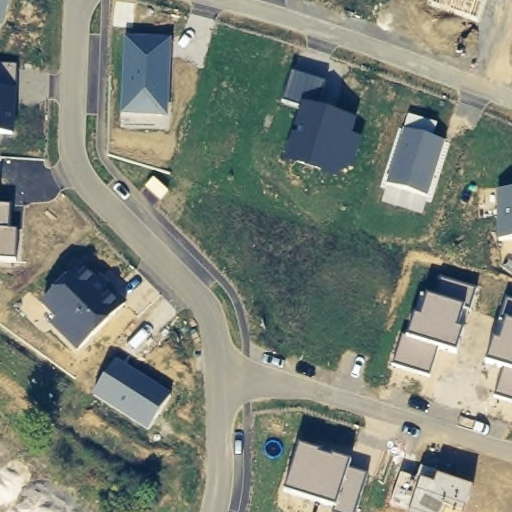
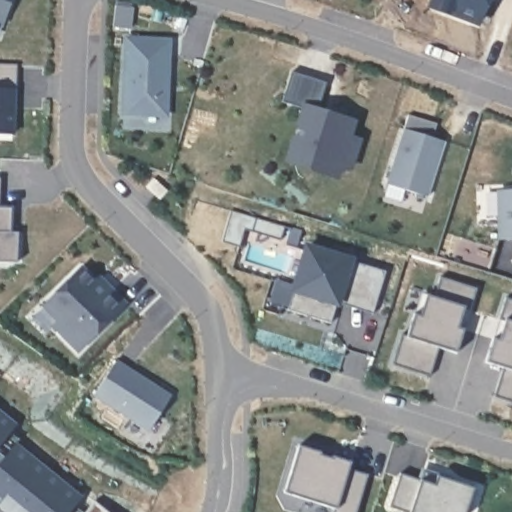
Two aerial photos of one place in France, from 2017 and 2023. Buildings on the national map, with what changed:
unchanged [(0,0),(12,0),(0,32),(0,0)]
unchanged [(487,0),(479,27),(427,4),(429,0),(487,0)]
unchanged [(171,39),(169,118),(120,115),(123,36),(171,39)]
unchanged [(15,134),(0,134),(0,65),(16,65),(15,134)]
unchanged [(326,82),(318,106),(356,119),(352,136),(363,139),(354,166),(337,178),(285,160),(301,106),(282,101),(292,72),(326,82)]
unchanged [(437,122),(433,138),(445,141),(427,197),(386,183),(409,114),(437,122)]
unchanged [(512,189),(512,240),(497,240),(496,189),(512,189)]
unchanged [(10,233),(16,233),(16,262),(0,261),(0,209),(10,209),(10,233)]
new [(289,309),(294,293),(290,290),(305,242),(355,258),(353,261),(386,271),(372,312),(339,302),(337,306),(335,305),(330,321),(289,309)]
unchanged [(82,264),(96,279),(100,275),(127,305),(77,354),(49,326),(55,321),(40,305),(82,264)]
unchanged [(476,288),(469,309),(464,308),(457,328),(463,329),(456,351),(439,346),(430,376),(393,364),(402,335),(407,337),(415,315),(421,317),(427,295),(434,298),(440,278),(476,288)]
unchanged [(512,300),(512,401),(494,394),(504,366),(486,361),(494,339),(500,341),(506,319),(499,318),(506,299),(512,300)]
unchanged [(172,396),(147,432),(92,396),(116,360),(172,396)]
demolished [(54,414),(40,432),(43,434),(32,449),(0,490),(0,369),(56,411),(54,414)]
new [(0,509),(0,409),(17,424),(11,433),(18,439),(16,443),(84,499),(77,508),(81,512),(4,512),(0,509)]
unchanged [(350,462),(347,470),(366,476),(356,512),(333,512),(335,507),(285,491),(299,447),(350,462)]
demolished [(79,486),(67,503),(79,512),(0,512),(0,490),(32,449),(79,486)]
unchanged [(417,479),(421,468),(449,476),(447,480),(471,488),(464,512),(407,512),(391,507),(401,474),(417,479)]
new [(94,499),(108,512),(83,512),(94,499)]

